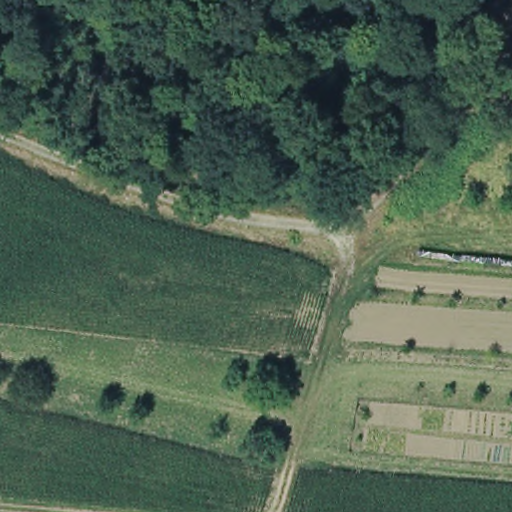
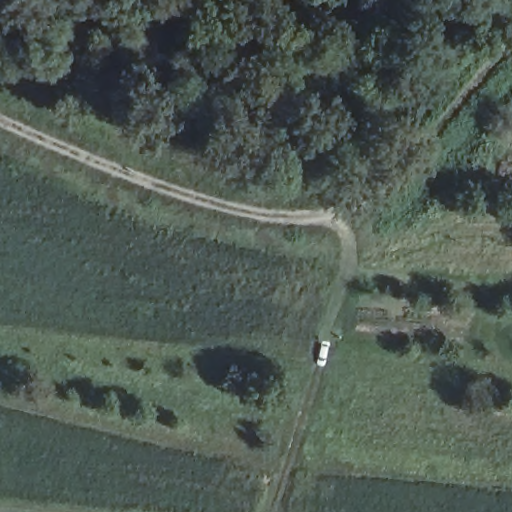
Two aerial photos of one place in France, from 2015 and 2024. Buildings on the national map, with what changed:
[]

